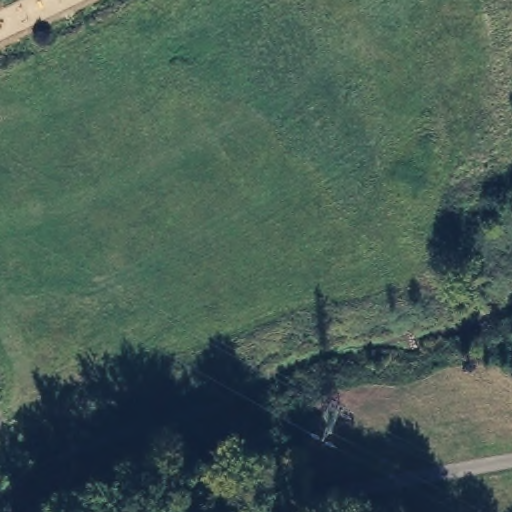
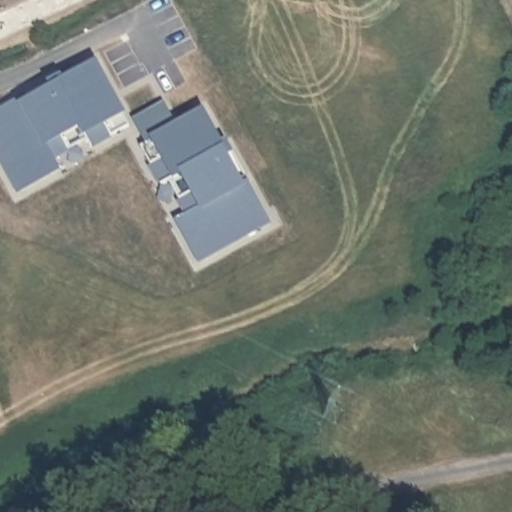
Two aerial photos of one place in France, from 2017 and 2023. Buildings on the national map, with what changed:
new [(0,109),(21,97),(23,101),(60,81),(97,61),(126,114),(124,116),(130,128),(92,148),(87,140),(55,158),(61,170),(17,193),(0,163),(0,109)]
new [(197,263),(175,222),(185,215),(167,181),(160,185),(139,146),(145,143),(132,119),(164,102),(176,123),(203,109),(246,187),(250,185),(271,223),(197,263)]

